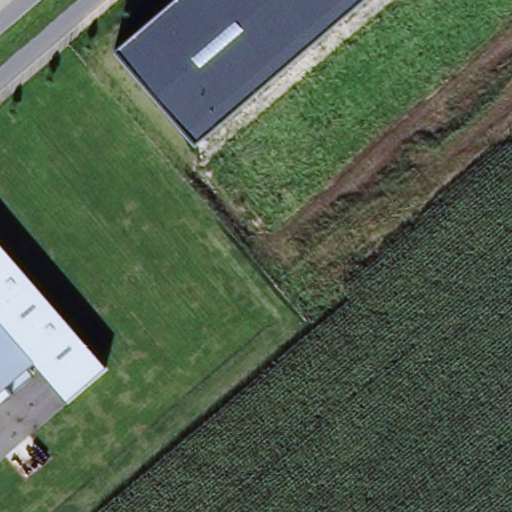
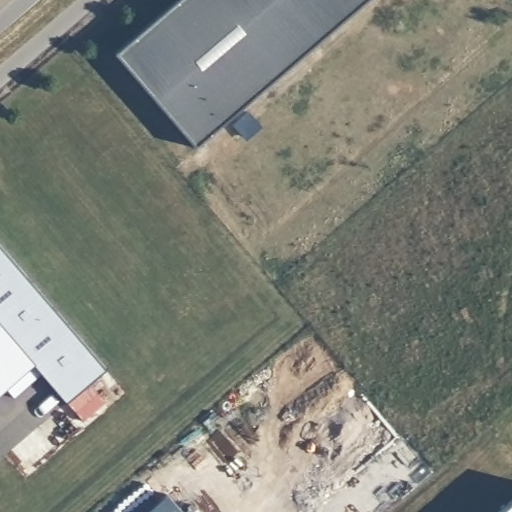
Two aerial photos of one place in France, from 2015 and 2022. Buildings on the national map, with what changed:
unchanged [(177,0),(366,0),(196,145),(115,53),(177,0)]
unchanged [(105,373),(68,405),(34,366),(0,394),(0,250),(105,373)]
new [(183,512),(150,512),(169,495),(183,512)]

